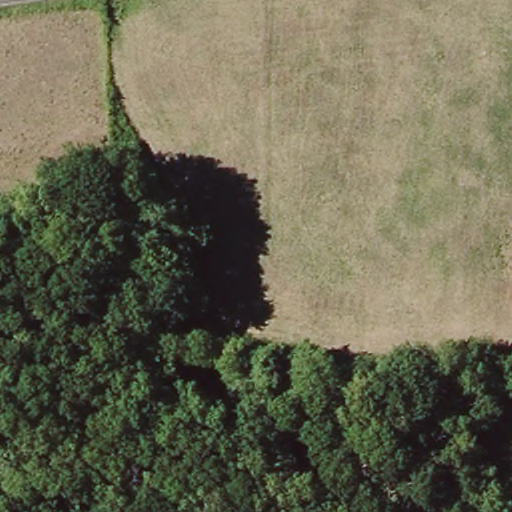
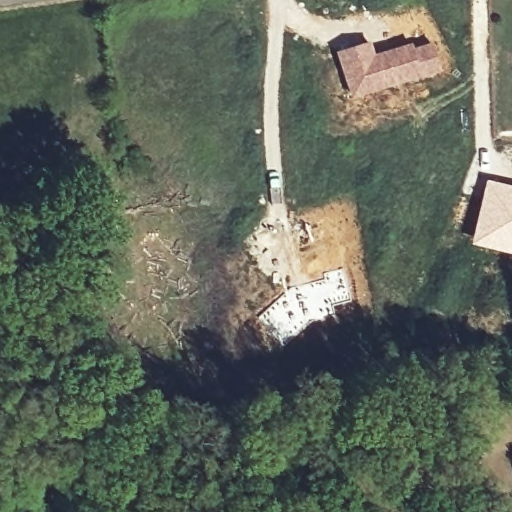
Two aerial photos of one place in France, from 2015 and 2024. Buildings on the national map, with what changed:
new [(370,40),(374,53),(411,41),(413,47),(432,41),(442,70),(349,98),(334,51),(370,40)]
new [(485,178),(512,185),(512,255),(469,244),(485,178)]

